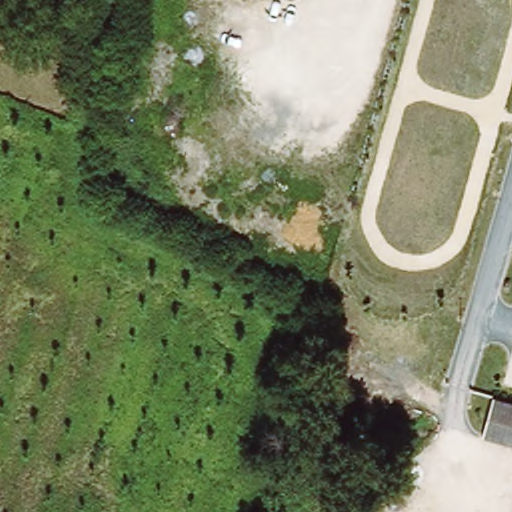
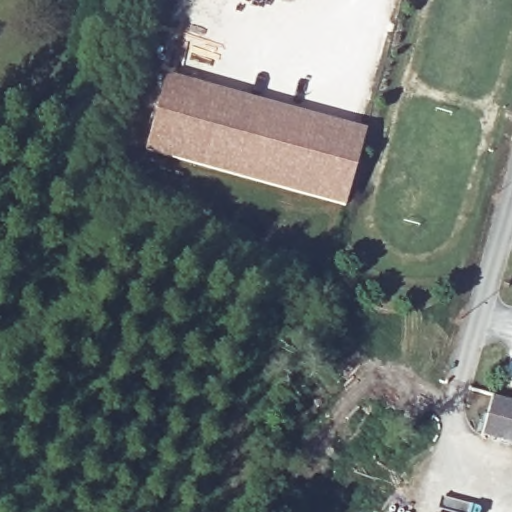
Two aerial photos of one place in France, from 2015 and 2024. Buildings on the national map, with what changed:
new [(168,76),(366,132),(345,207),(147,150),(168,76)]
unchanged [(476,432),(486,396),(512,404),(512,442),(476,432)]

